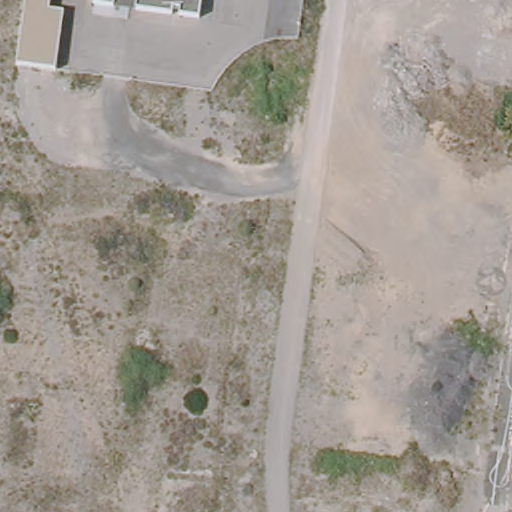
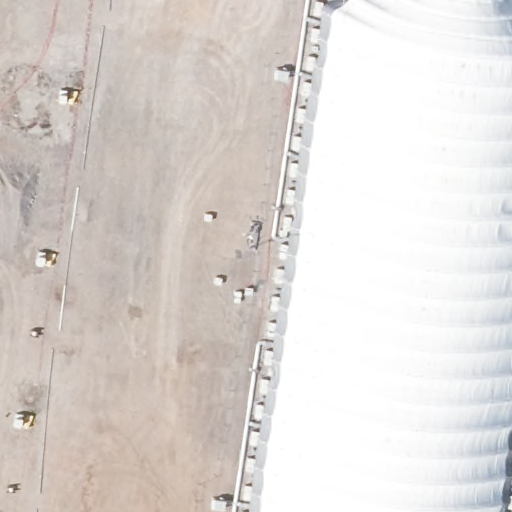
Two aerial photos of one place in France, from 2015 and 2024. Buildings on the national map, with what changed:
demolished [(68,10),(61,70),(21,65),(32,0),(57,0),(55,8),(68,10)]
demolished [(94,1),(94,0),(114,0),(113,4),(94,1)]
demolished [(178,14),(179,9),(173,9),(173,12),(134,7),(135,0),(201,0),(198,17),(178,14)]
new [(504,512),(258,512),(327,27),(328,11),(331,6),(339,0),(512,0),(512,454),(504,512)]

